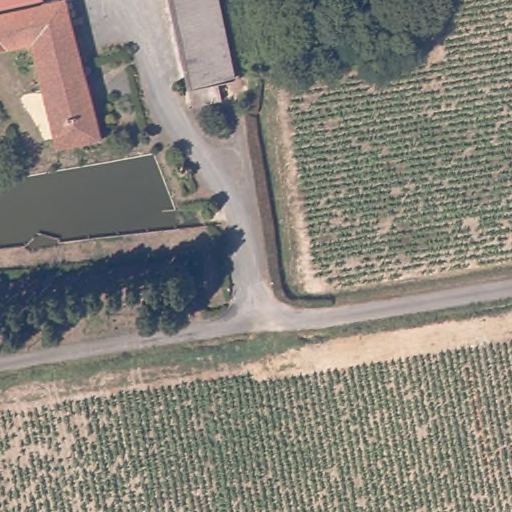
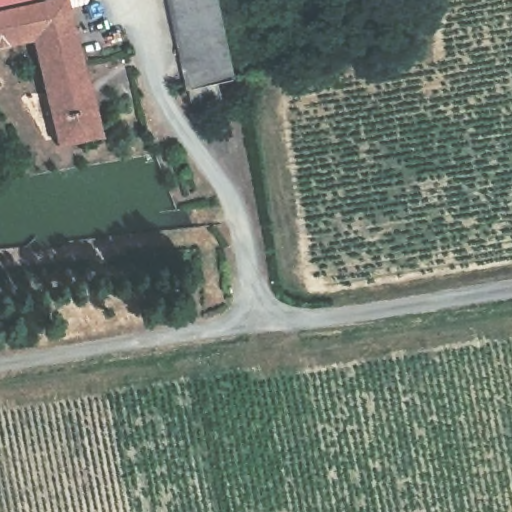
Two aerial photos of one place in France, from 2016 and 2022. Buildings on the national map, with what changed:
unchanged [(59,142),(27,37),(0,42),(0,0),(67,0),(87,73),(102,131),(59,142)]
unchanged [(239,77),(223,79),(225,97),(194,103),(172,0),(224,0),(239,77)]
unchanged [(374,52),(352,55),(348,34),(370,30),(374,52)]

